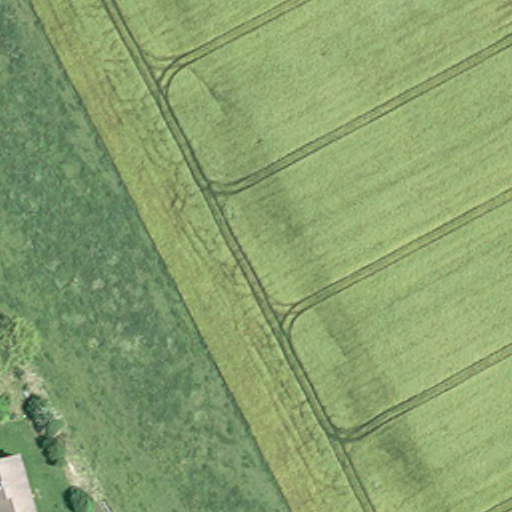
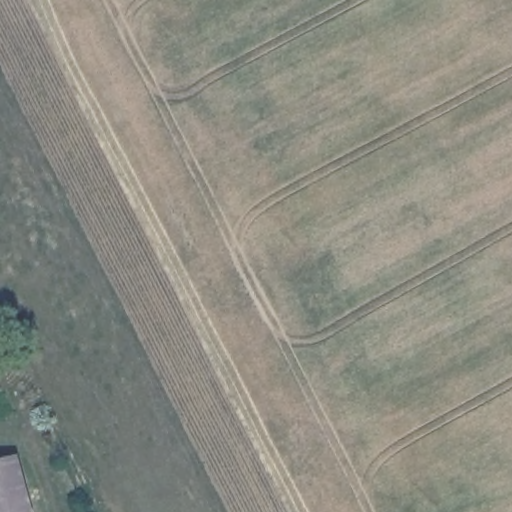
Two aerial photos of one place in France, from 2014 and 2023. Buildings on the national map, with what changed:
unchanged [(18,454),(35,512),(0,512),(0,460),(18,454)]

